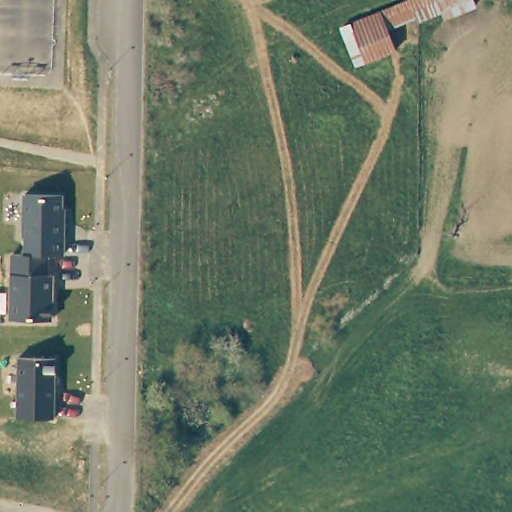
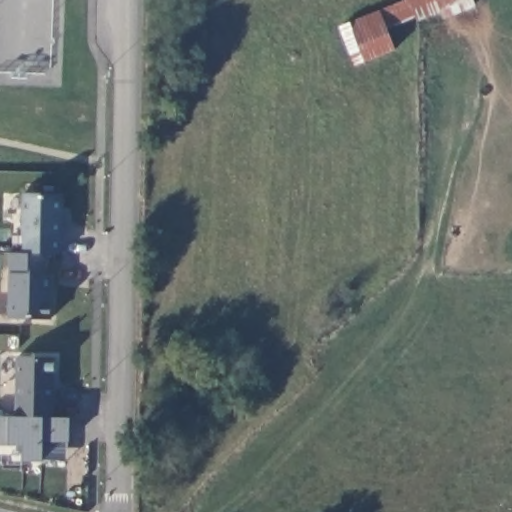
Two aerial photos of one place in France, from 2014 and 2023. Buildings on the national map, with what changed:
unchanged [(442,13),(414,22),(413,17),(385,27),(391,51),(352,66),(335,25),(397,0),(472,0),(474,6),(443,19),(442,13)]
unchanged [(10,322),(12,254),(25,253),(24,194),(63,195),(63,255),(48,254),(47,273),(53,273),(52,321),(10,322)]
unchanged [(17,416),(18,357),(54,360),(54,418),(17,416)]
new [(43,463),(22,463),(23,445),(10,446),(9,448),(0,448),(0,416),(10,416),(17,416),(54,418),(70,417),(68,442),(67,462),(43,463)]

